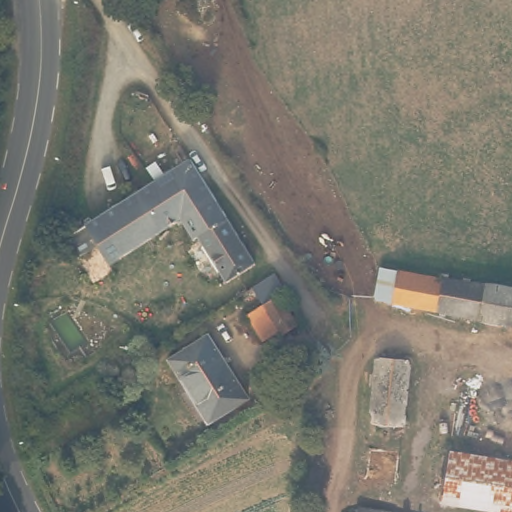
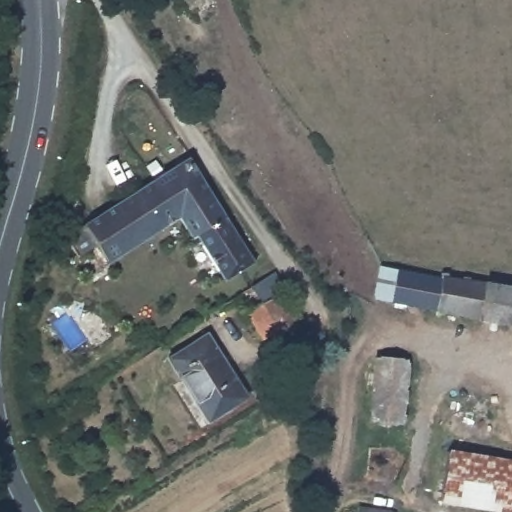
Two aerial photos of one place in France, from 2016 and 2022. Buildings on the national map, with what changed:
unchanged [(190,159),(257,260),(225,279),(178,219),(108,261),(84,224),(190,159)]
unchanged [(476,316),(373,298),(378,267),(440,278),(441,276),(483,283),(476,316)]
unchanged [(476,316),(483,283),(483,281),(512,285),(512,325),(475,318),(476,316)]
unchanged [(287,345),(285,341),(268,351),(252,324),(269,313),(259,296),(281,282),(293,298),(285,303),(303,334),(287,345)]
unchanged [(246,397),(207,421),(167,358),(206,333),(246,397)]
unchanged [(376,357),(408,360),(400,423),(368,421),(376,357)]
unchanged [(455,451),(512,460),(512,509),(447,499),(455,451)]

